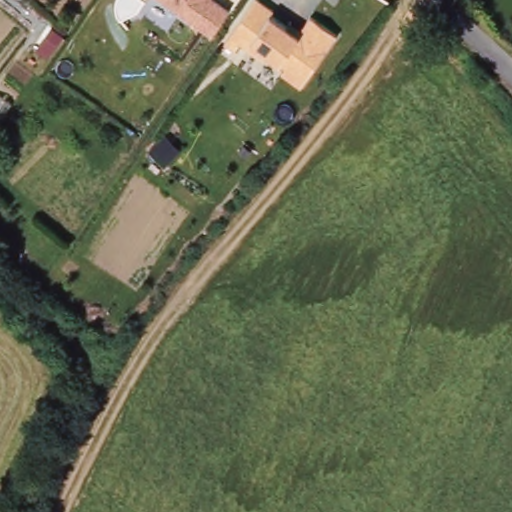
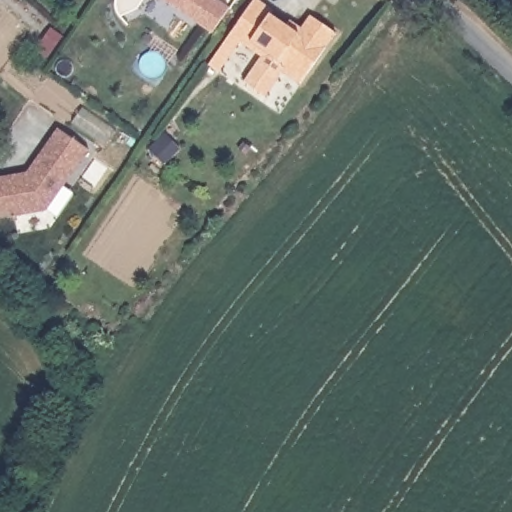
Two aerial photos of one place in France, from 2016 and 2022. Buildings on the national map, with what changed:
unchanged [(171,0),(223,0),(231,5),(214,29),(171,0)]
unchanged [(275,11),(290,21),(293,17),(305,25),(314,12),(339,29),(302,80),(283,66),(287,61),(269,48),(265,53),(243,38),(238,45),(228,38),(256,0),(267,0),(277,7),(275,11)]
new [(46,211),(14,217),(12,212),(0,214),(0,176),(26,171),(57,128),(87,148),(46,211)]

